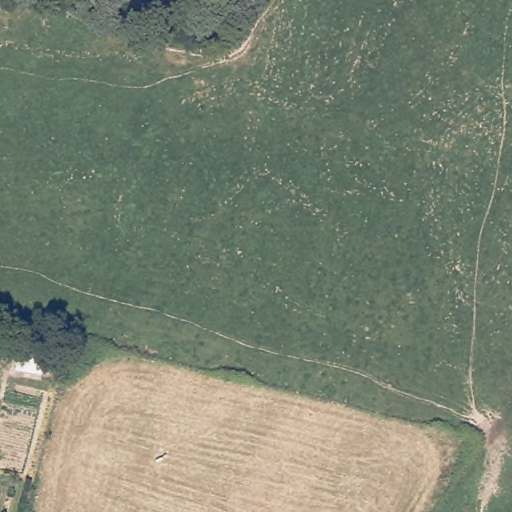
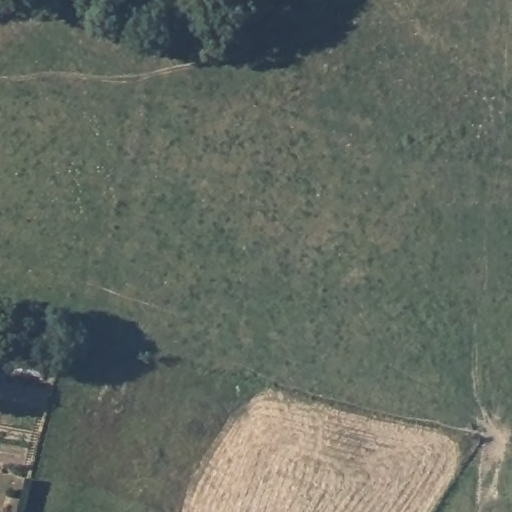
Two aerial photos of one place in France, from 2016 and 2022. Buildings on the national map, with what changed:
unchanged [(19,351),(47,356),(45,376),(14,370),(19,351)]

